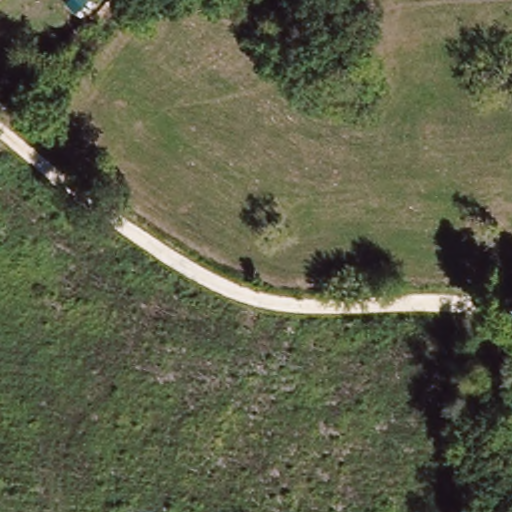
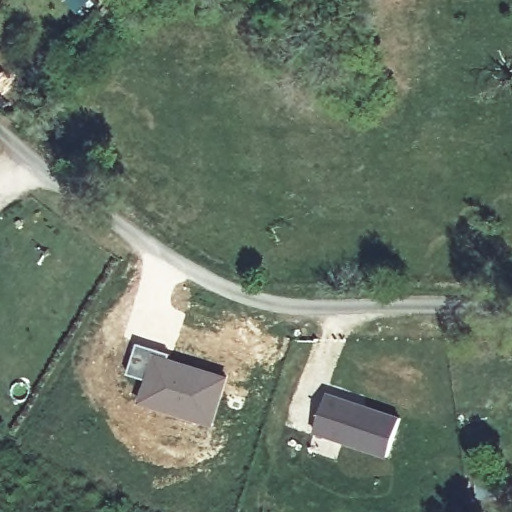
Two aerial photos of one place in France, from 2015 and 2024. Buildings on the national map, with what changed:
new [(131,376),(140,345),(161,352),(173,356),(171,362),(228,380),(214,426),(154,408),(143,404),(150,382),(131,376)]
new [(329,393),(403,417),(391,456),(317,432),(329,393)]

